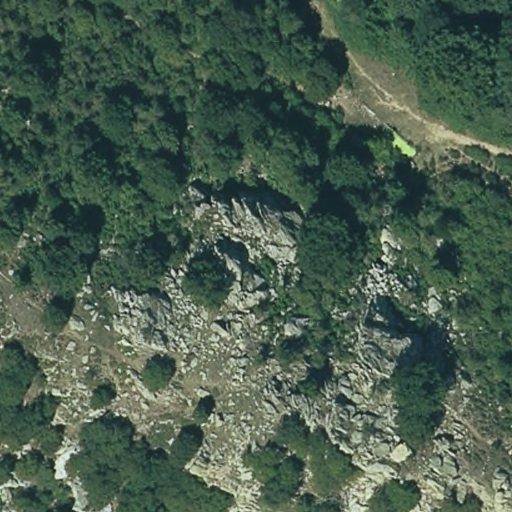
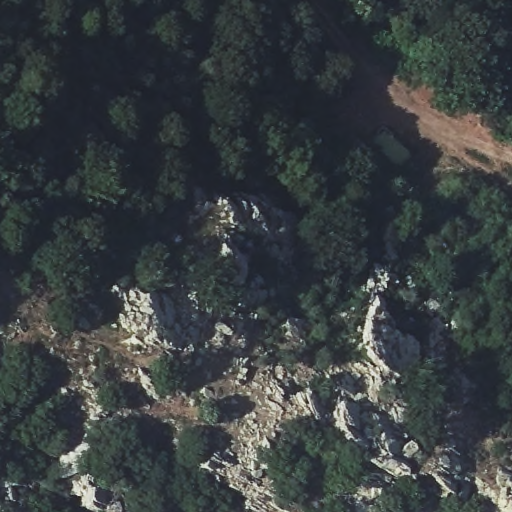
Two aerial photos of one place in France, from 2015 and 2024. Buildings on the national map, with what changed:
unchanged [(368,144),(360,155),(343,144),(352,133),(368,144)]

